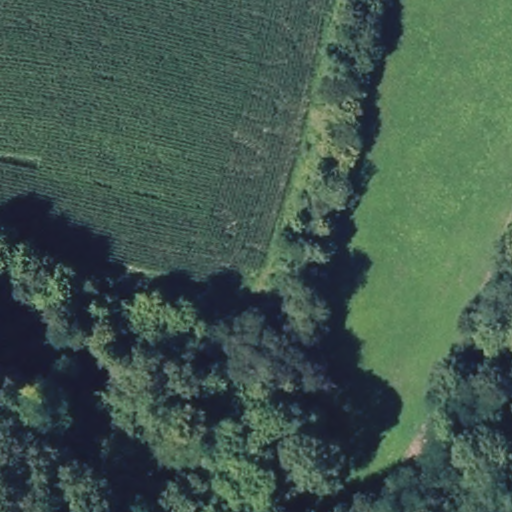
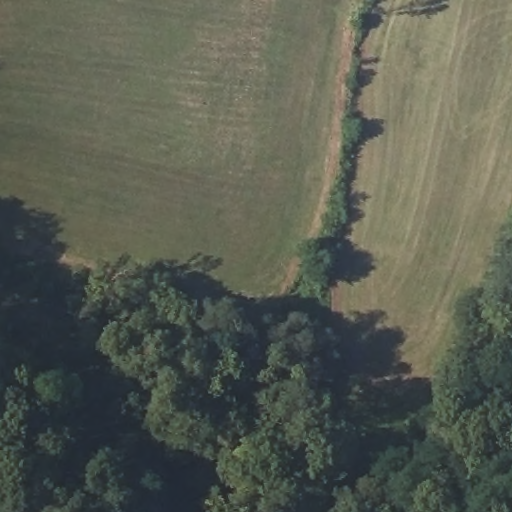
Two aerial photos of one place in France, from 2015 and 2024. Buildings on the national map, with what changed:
unchanged [(63,369),(34,407),(0,380),(0,340),(10,328),(63,369)]

